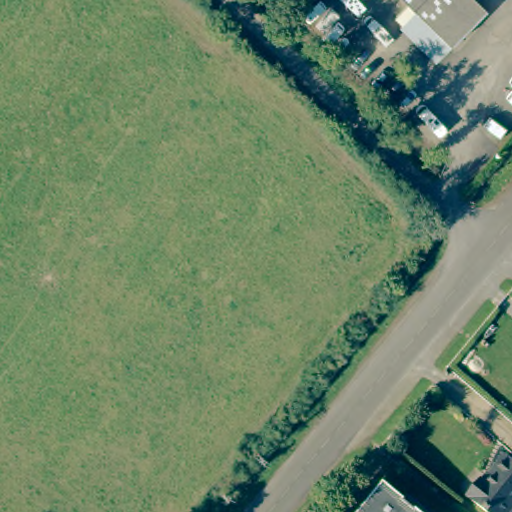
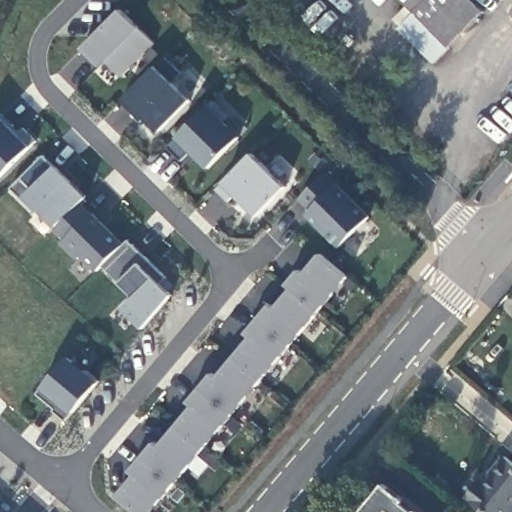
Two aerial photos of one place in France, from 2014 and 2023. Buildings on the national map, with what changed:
new [(285,0),(308,0),(296,11),(285,0)]
unchanged [(475,0),(483,8),(449,44),(414,11),(402,0),(475,0)]
new [(122,76),(108,59),(100,66),(82,48),(119,9),(139,27),(156,43),(122,76)]
unchanged [(434,61),(398,27),(414,11),(449,44),(434,61)]
new [(165,56),(181,72),(171,82),(189,100),(158,132),(135,109),(131,112),(120,101),(165,56)]
new [(213,100),(228,115),(222,121),(238,137),(209,167),(191,150),(180,161),(166,147),(213,100)]
new [(1,113),(19,131),(23,127),(36,141),(0,177),(0,115),(1,113)]
new [(251,153),(285,187),(256,216),(234,195),(228,202),(215,190),(251,153)]
new [(43,155),(85,197),(80,203),(58,225),(40,208),(36,213),(10,188),(43,155)]
new [(324,172),(369,217),(339,246),(306,214),(310,209),(299,198),(324,172)]
new [(58,225),(80,203),(90,214),(91,213),(123,245),(97,271),(81,255),(78,258),(62,242),(65,239),(55,228),(58,225)]
new [(130,239),(167,277),(161,282),(173,293),(143,328),(123,308),(134,297),(120,282),(102,266),(123,245),(130,239)]
new [(115,497),(134,475),(128,470),(154,440),(159,445),(190,407),(186,401),(212,372),(217,377),(250,337),(244,332),(270,302),(275,307),(290,288),(285,284),(298,268),(304,272),(319,253),(348,276),(148,512),(134,512),(115,497)]
new [(42,388),(68,356),(99,380),(70,413),(66,420),(36,394),(42,388)]
unchanged [(512,508),(508,512),(486,512),(465,495),(478,479),(481,481),(501,457),(512,466),(512,508)]
unchanged [(382,484),(417,512),(360,512),(382,484)]

